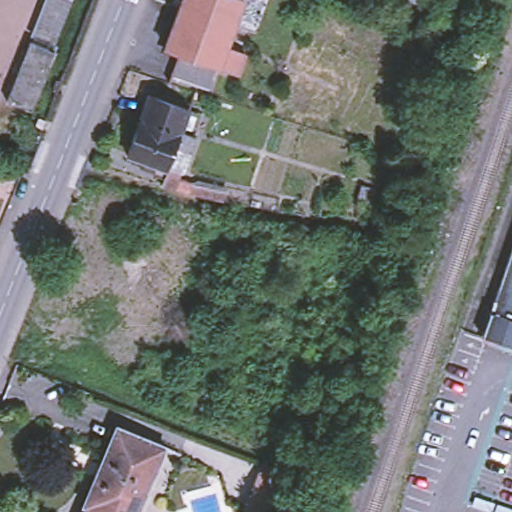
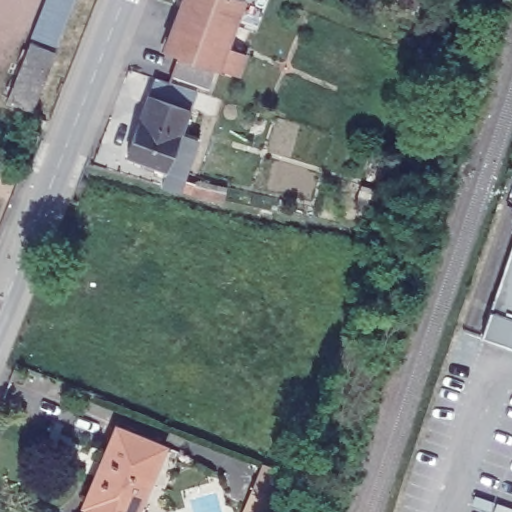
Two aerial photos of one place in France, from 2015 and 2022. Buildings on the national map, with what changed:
unchanged [(47,0),(71,0),(56,39),(35,30),(47,0)]
unchanged [(227,18),(225,26),(172,5),(174,0),(258,0),(247,26),(227,18)]
unchanged [(162,72),(171,50),(157,44),(172,5),(225,26),(217,44),(237,52),(229,73),(209,65),(200,86),(162,72)]
unchanged [(56,45),(33,105),(8,95),(32,35),(56,45)]
unchanged [(138,104),(146,84),(186,99),(195,102),(186,122),(193,125),(187,140),(173,135),(165,154),(180,159),(176,166),(190,171),(187,180),(158,172),(164,157),(124,142),(138,104)]
unchanged [(503,315),(491,311),(512,250),(512,319),(503,315)]
unchanged [(512,319),(512,335),(498,330),(503,315),(512,319)]
unchanged [(90,512),(85,510),(80,508),(114,429),(162,450),(136,512),(90,512)]
unchanged [(175,455),(153,507),(165,512),(136,512),(162,450),(175,455)]
unchanged [(290,500),(261,490),(270,467),(298,479),(290,500)]
unchanged [(90,512),(84,512),(85,510),(90,512)]

